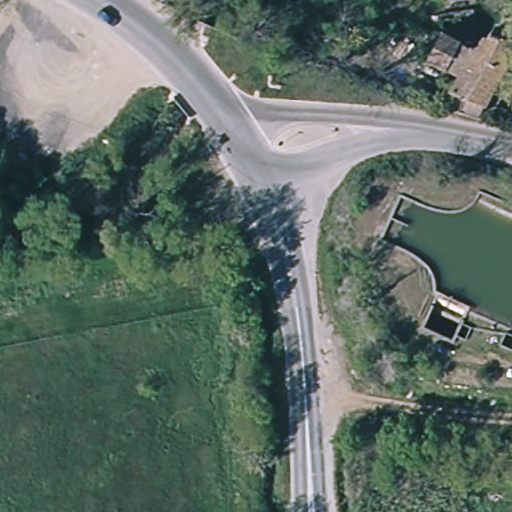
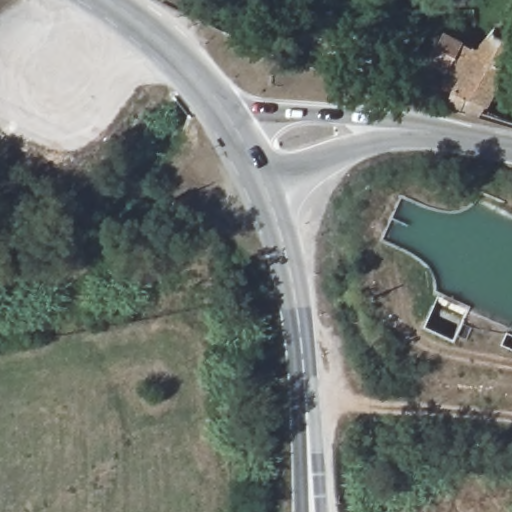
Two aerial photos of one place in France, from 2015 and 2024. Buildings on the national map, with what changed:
unchanged [(449,96),(457,80),(427,61),(446,34),(472,49),(487,33),(512,49),(512,64),(486,115),(449,96)]

